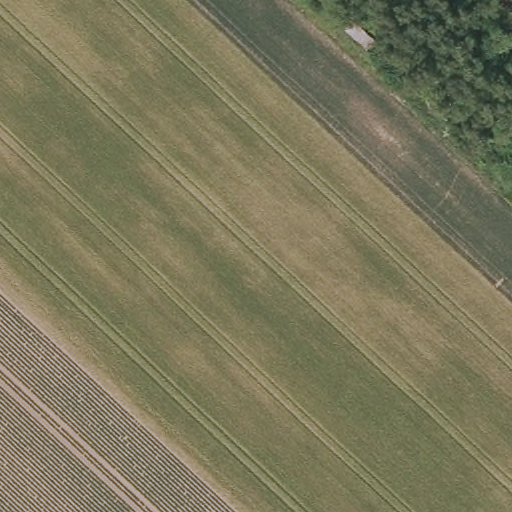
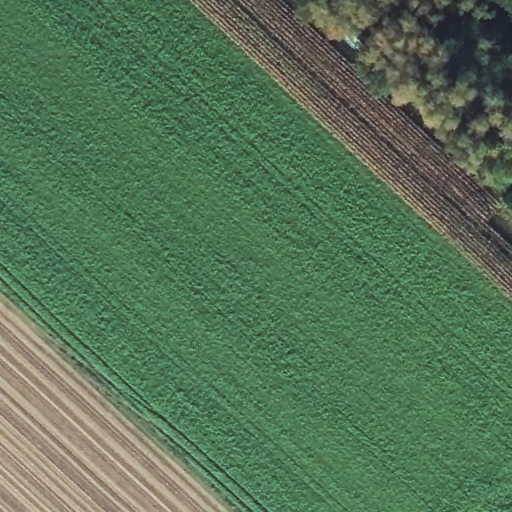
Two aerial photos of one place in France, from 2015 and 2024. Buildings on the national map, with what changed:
[]

